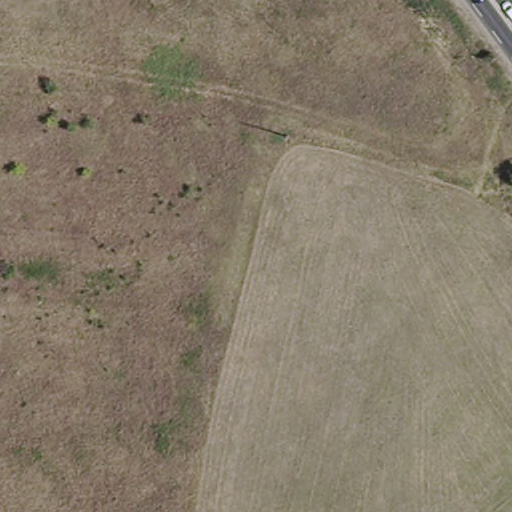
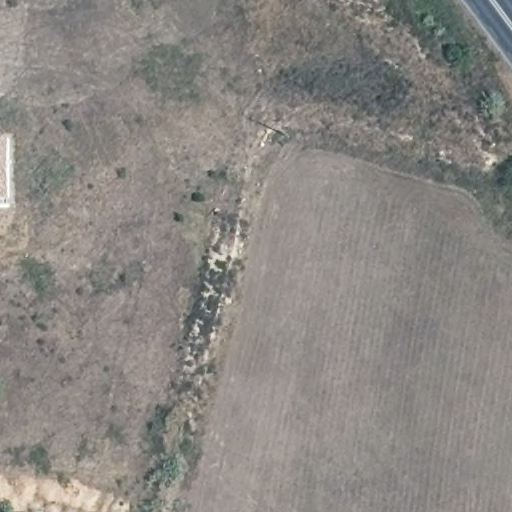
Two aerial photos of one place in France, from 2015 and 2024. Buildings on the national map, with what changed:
new [(0,139),(10,139),(10,199),(0,199),(0,139)]

